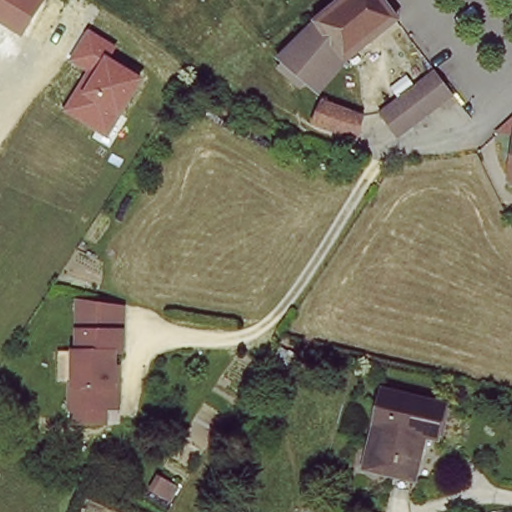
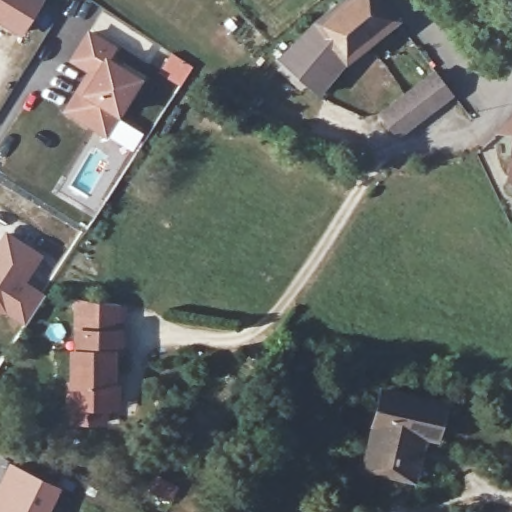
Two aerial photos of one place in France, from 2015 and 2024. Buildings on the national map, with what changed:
unchanged [(44,0),(21,36),(0,23),(0,0),(44,0)]
unchanged [(356,54),(315,96),(278,58),(347,0),(385,0),(400,20),(356,54)]
unchanged [(62,111),(86,71),(69,61),(89,30),(118,46),(111,59),(143,79),(107,138),(62,111)]
unchanged [(376,116),(428,71),(446,94),(392,136),(376,116)]
unchanged [(512,151),(512,165),(511,165),(512,151)]
new [(44,256),(27,284),(46,295),(26,325),(8,315),(0,314),(0,244),(8,232),(44,256)]
unchanged [(74,420),(74,400),(67,400),(67,375),(76,375),(75,300),(121,300),(122,350),(116,350),(116,362),(127,362),(127,383),(116,383),(110,384),(110,400),(103,400),(102,420),(74,420)]
unchanged [(440,404),(433,434),(422,432),(412,475),(363,464),(377,389),(440,404)]
new [(12,462),(65,488),(53,512),(0,512),(0,487),(12,462)]

